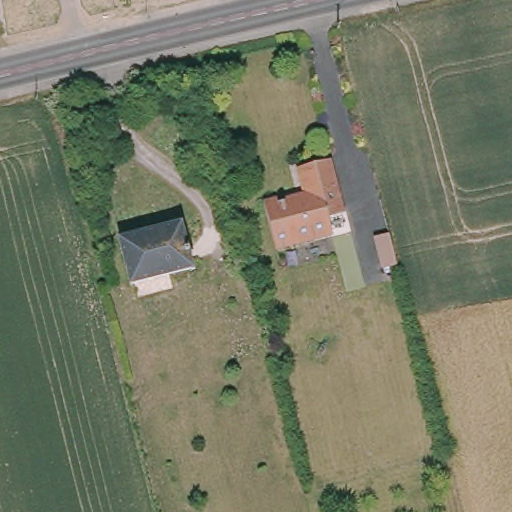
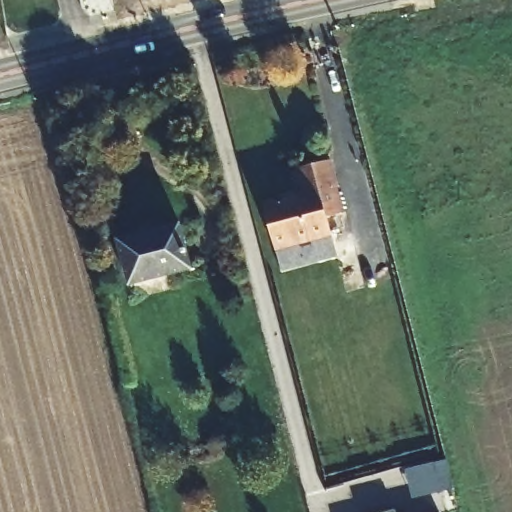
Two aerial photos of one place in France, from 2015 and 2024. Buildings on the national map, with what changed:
unchanged [(280,201),(281,206),(307,200),(301,174),(332,165),(345,217),(331,220),(335,237),(290,248),(290,244),(274,247),(264,205),(280,201)]
unchanged [(182,229),(192,272),(130,286),(120,244),(182,229)]
new [(448,460),(455,488),(412,498),(405,470),(448,460)]
new [(395,512),(388,512),(395,510),(395,512)]

